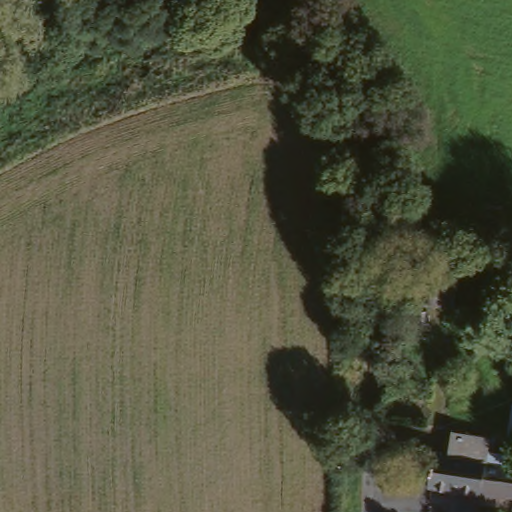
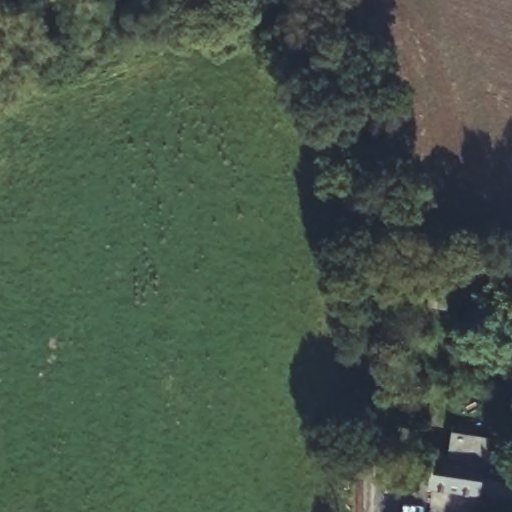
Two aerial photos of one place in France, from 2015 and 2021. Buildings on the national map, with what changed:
unchanged [(468,269),(457,325),(418,318),(428,261),(468,269)]
unchanged [(435,492),(438,461),(453,462),(456,437),(492,439),(491,455),(512,456),(512,499),(435,492)]

